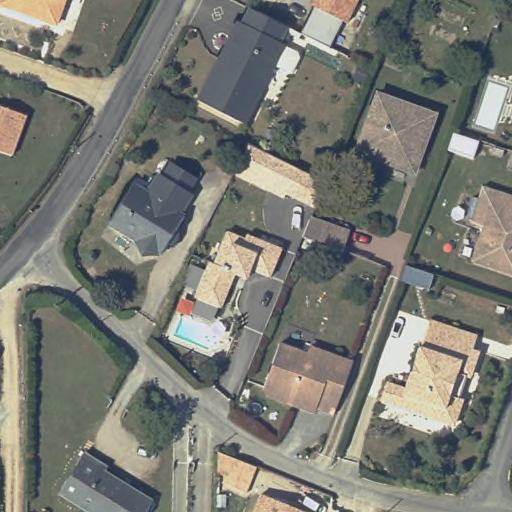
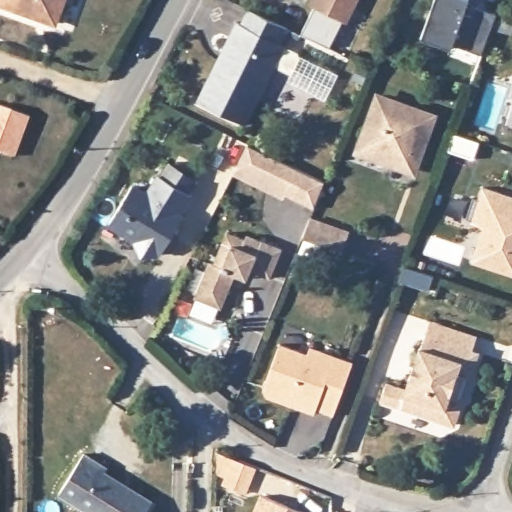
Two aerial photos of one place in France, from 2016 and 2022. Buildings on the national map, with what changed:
unchanged [(38,14),(36,17),(0,0),(69,0),(58,23),(38,14)]
unchanged [(356,0),(347,19),(314,3),(310,1),(311,0),(356,0)]
new [(454,44),(452,47),(422,35),(435,0),(469,0),(465,12),(475,15),(479,6),(497,14),(482,53),(454,44)]
unchanged [(239,19),(247,4),(287,24),(279,39),(284,42),(283,43),(295,50),(297,54),(289,70),(274,62),(243,122),(194,97),(215,55),(219,48),(234,17),(239,19)]
unchanged [(404,106),(431,116),(411,171),(389,163),(391,159),(384,157),(358,147),(361,141),(369,118),(377,96),(404,106)]
unchanged [(11,159),(0,155),(0,109),(26,119),(11,159)]
unchanged [(282,159),(268,188),(235,173),(249,144),(282,159)]
unchanged [(324,180),(314,205),(285,191),(283,196),(268,188),(282,159),(324,180)]
unchanged [(164,242),(158,252),(157,251),(141,250),(134,237),(107,220),(130,182),(145,191),(157,172),(160,174),(168,161),(194,177),(186,189),(189,191),(178,211),(182,213),(173,227),(176,229),(175,237),(170,245),(164,242)]
unchanged [(469,220),(470,218),(464,216),(472,195),(478,196),(482,184),(499,190),(512,195),(512,273),(471,259),(482,225),(469,220)]
unchanged [(347,228),(340,247),(300,233),(308,214),(347,228)]
unchanged [(237,273),(233,272),(219,306),(193,295),(207,260),(212,261),(225,229),(244,237),(245,233),(279,247),(268,275),(249,267),(246,273),(244,276),(237,273)]
unchanged [(454,398),(449,415),(442,418),(373,394),(379,374),(399,381),(413,339),(414,340),(419,327),(424,312),(471,329),(466,343),(468,344),(471,350),(465,367),(459,370),(451,392),(454,398)]
unchanged [(292,407),(291,407),(265,397),(262,391),(279,344),(307,354),(309,347),(314,349),(352,362),(332,416),(314,409),(312,414),(292,407)]
unchanged [(59,488),(84,450),(109,466),(107,470),(123,481),(153,500),(145,512),(95,512),(59,488)]
unchanged [(259,488),(316,512),(249,512),(259,488)]

